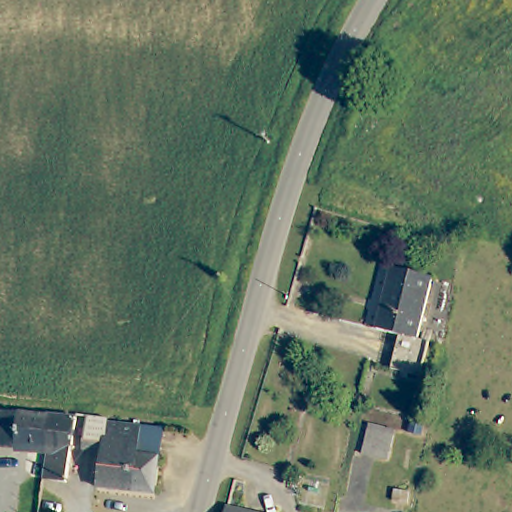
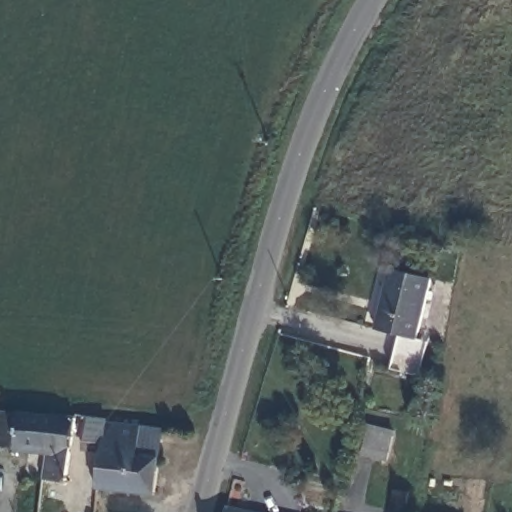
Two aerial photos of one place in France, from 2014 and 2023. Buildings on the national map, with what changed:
unchanged [(431,270),(415,328),(427,331),(417,365),(388,358),(397,324),(375,318),(391,260),(431,270)]
unchanged [(51,410),(84,412),(79,484),(55,482),(57,459),(48,458),(1,455),(1,453),(6,407),(51,410)]
unchanged [(111,452),(91,451),(93,414),(113,417),(113,425),(170,428),(167,494),(110,489),(111,452)]
unchanged [(394,441),(389,468),(361,461),(366,436),(394,441)]
unchanged [(239,483),(234,502),(217,499),(221,478),(239,483)]
unchanged [(215,507),(238,512),(214,512),(215,507)]

